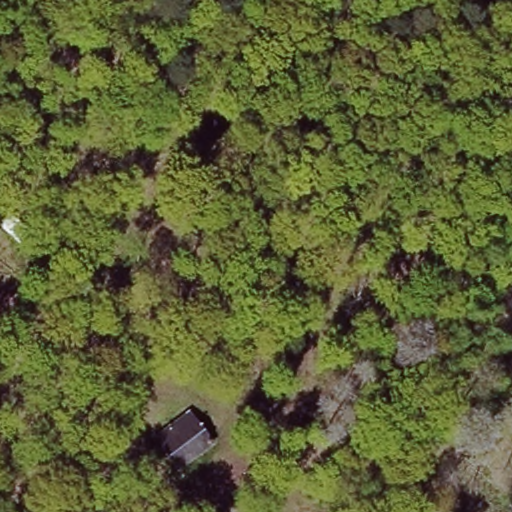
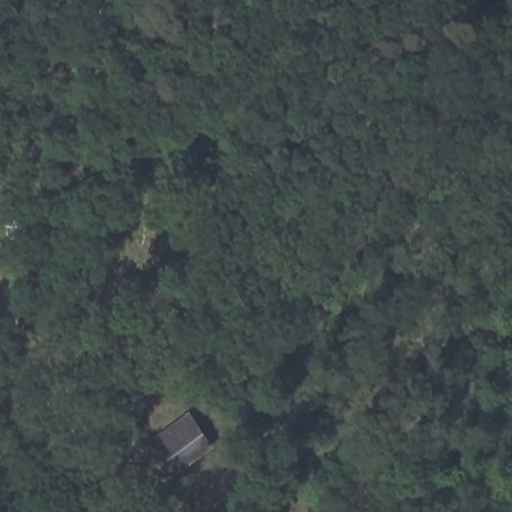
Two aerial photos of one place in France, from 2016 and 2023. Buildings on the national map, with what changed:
unchanged [(178,468),(156,435),(194,407),(214,440),(178,468)]

